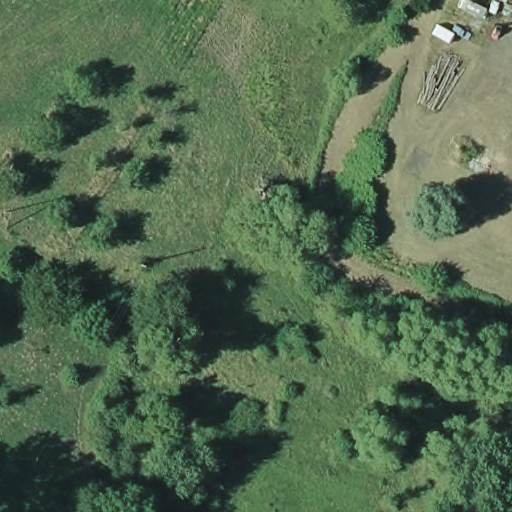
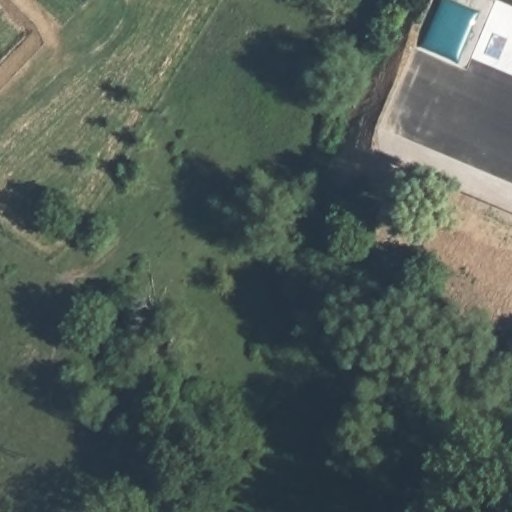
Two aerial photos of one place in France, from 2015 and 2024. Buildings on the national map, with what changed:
[]

